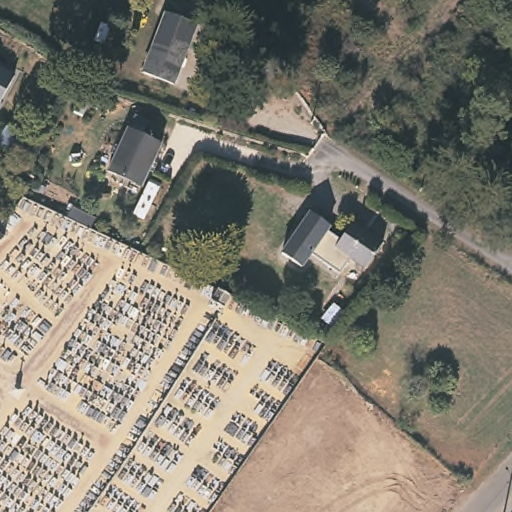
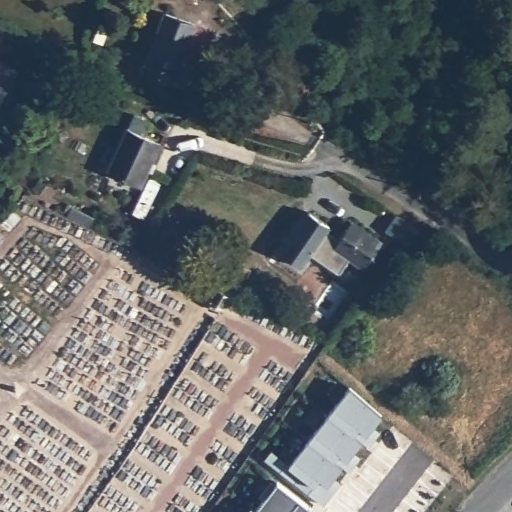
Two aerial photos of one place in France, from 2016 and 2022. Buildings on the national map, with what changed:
unchanged [(194,23),(173,83),(144,72),(165,13),(194,23)]
unchanged [(1,65),(0,66),(0,64),(1,65)]
unchanged [(17,76),(0,106),(0,67),(17,76)]
unchanged [(157,141),(139,183),(107,169),(125,127),(157,141)]
unchanged [(459,220),(455,216),(421,192),(430,181),(462,205),(467,208),(459,220)]
unchanged [(331,226),(305,267),(279,250),(307,208),(331,226)]
unchanged [(350,227),(381,247),(364,271),(333,252),(339,244),(350,227)]
unchanged [(230,295),(222,307),(209,301),(216,288),(230,295)]
new [(267,458),(272,449),(290,465),(351,386),(385,415),(375,426),(382,432),(371,445),(363,440),(355,452),(362,457),(350,470),(344,466),(335,478),(342,482),(324,504),(267,458)]
demolished [(401,433),(392,444),(363,419),(373,407),(401,433)]
demolished [(407,471),(370,512),(361,512),(339,493),(355,475),(353,473),(363,460),(378,472),(392,457),(407,471)]
new [(278,482),(311,508),(307,512),(255,512),(278,482)]

